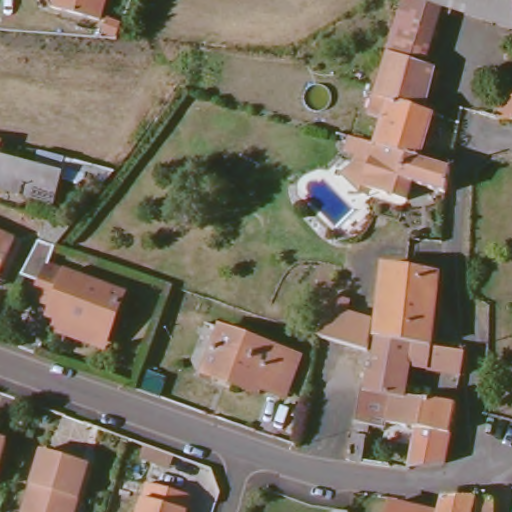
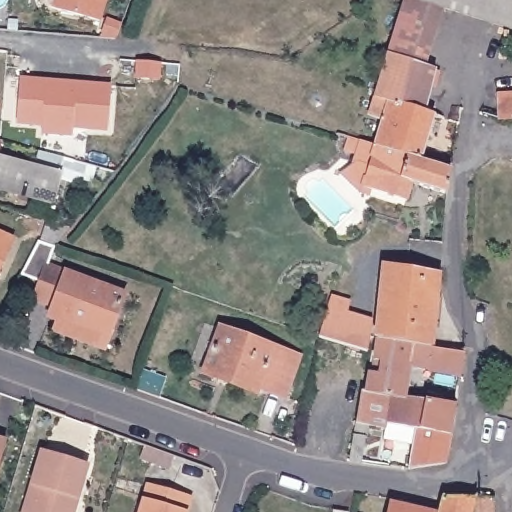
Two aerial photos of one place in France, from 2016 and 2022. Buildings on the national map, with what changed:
unchanged [(53,8),(52,8),(50,7),(49,6),(48,5),(47,4),(46,3),(45,1),(45,0),(104,0),(99,20),(54,8),(53,8)]
unchanged [(421,63),(437,67),(426,111),(376,96),(405,0),(512,0),(512,29),(438,5),(421,63)]
unchanged [(118,39),(104,34),(109,20),(123,25),(118,39)]
new [(72,128),(71,137),(41,134),(41,127),(17,124),(20,78),(110,84),(108,133),(72,128)]
unchanged [(499,95),(512,94),(512,119),(501,120),(499,95)]
unchanged [(377,145),(384,121),(371,116),(376,96),(426,111),(434,113),(434,114),(421,158),(377,145)]
unchanged [(346,150),(350,137),(377,145),(421,158),(453,167),(447,192),(416,183),(412,201),(370,188),(369,194),(368,197),(360,195),(354,189),(347,179),(333,162),(346,150)]
unchanged [(53,170),(45,200),(0,188),(0,155),(53,170)]
unchanged [(18,235),(0,275),(0,277),(0,227),(18,235)]
unchanged [(112,330),(53,308),(57,298),(38,291),(44,274),(29,269),(52,237),(57,238),(50,257),(128,285),(112,330)]
unchanged [(374,340),(378,317),(374,316),(381,266),(434,274),(423,347),(374,340)]
unchanged [(341,343),(315,334),(319,307),(321,295),(347,298),(346,312),(349,313),(364,316),(369,317),(366,332),(367,339),(364,350),(341,343)]
unchanged [(286,395),(265,388),(263,393),(206,372),(221,328),(299,355),(286,395)]
unchanged [(456,374),(406,365),(401,396),(391,394),(362,390),(364,376),(369,377),(374,340),(423,347),(459,353),(456,374)]
unchanged [(360,438),(356,462),(344,460),(351,423),(358,389),(362,390),(391,394),(385,422),(384,429),(367,426),(364,439),(360,438)]
unchanged [(412,427),(385,422),(391,394),(401,396),(451,405),(441,462),(439,475),(404,468),(404,467),(412,427)]
unchanged [(5,439),(0,457),(0,438),(5,439)]
unchanged [(38,445),(84,459),(74,493),(69,512),(17,512),(38,445)]
unchanged [(148,483),(193,497),(188,512),(139,512),(148,483)]
unchanged [(303,506),(291,502),(292,497),(294,490),(306,493),(304,501),(303,506)]
unchanged [(447,502),(499,502),(498,512),(444,512),(447,502)]
unchanged [(397,509),(411,512),(396,512),(397,509)]
unchanged [(335,510),(344,512),(335,512),(335,510)]

